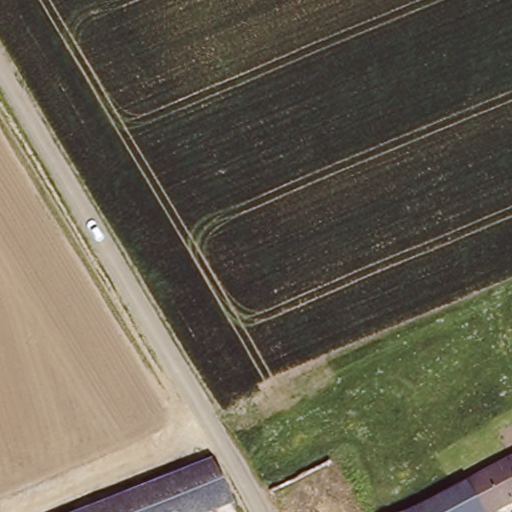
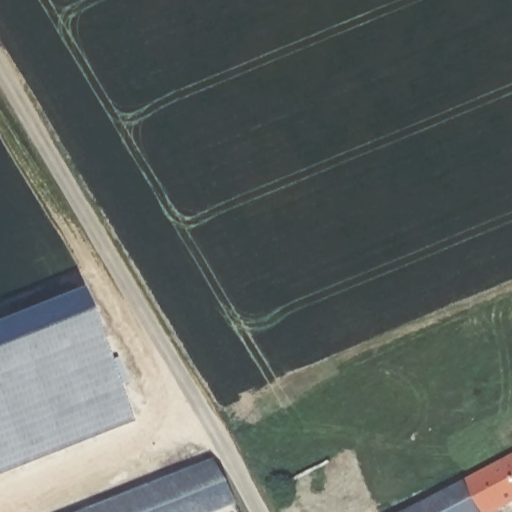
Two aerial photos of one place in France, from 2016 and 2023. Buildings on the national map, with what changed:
new [(0,319),(76,289),(130,420),(0,472),(0,319)]
unchanged [(497,512),(491,512),(477,478),(512,461),(512,505),(497,512)]
unchanged [(226,507),(215,512),(81,512),(201,464),(226,507)]
unchanged [(477,478),(491,512),(419,512),(417,508),(477,478)]
unchanged [(419,512),(409,512),(417,508),(419,512)]

